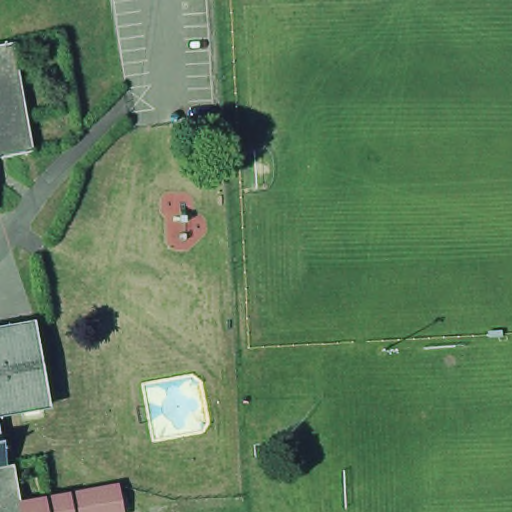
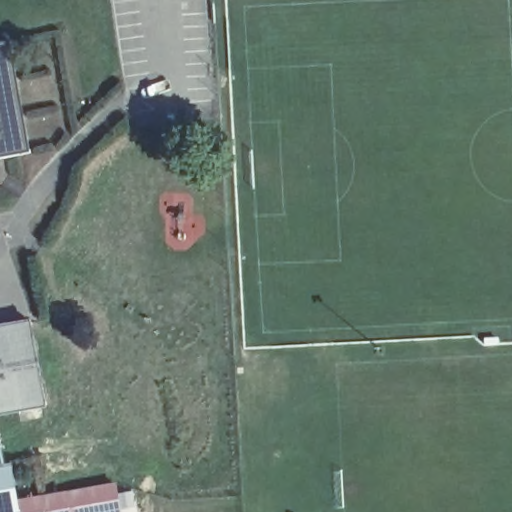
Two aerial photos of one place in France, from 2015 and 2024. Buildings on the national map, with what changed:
unchanged [(8,46),(28,156),(0,162),(0,47),(8,46)]
unchanged [(35,324),(48,405),(0,413),(0,330),(35,324)]
unchanged [(4,463),(11,462),(14,483),(0,485),(0,440),(4,463)]
unchanged [(14,483),(17,500),(19,512),(0,512),(0,485),(14,483)]
unchanged [(114,485),(118,512),(19,512),(17,500),(114,485)]

